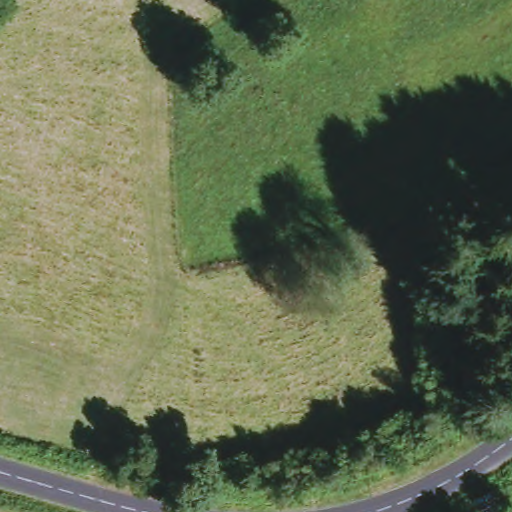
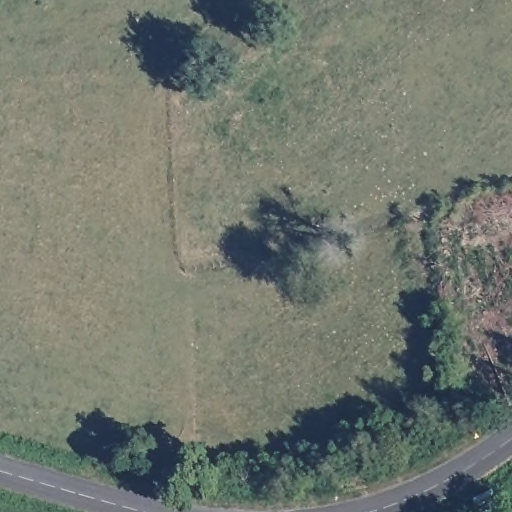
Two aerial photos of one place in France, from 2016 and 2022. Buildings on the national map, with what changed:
unchanged [(489,498),(496,512),(474,512),(473,509),(489,498)]

